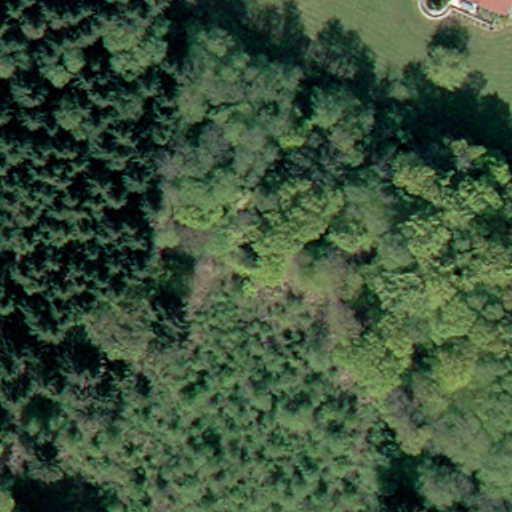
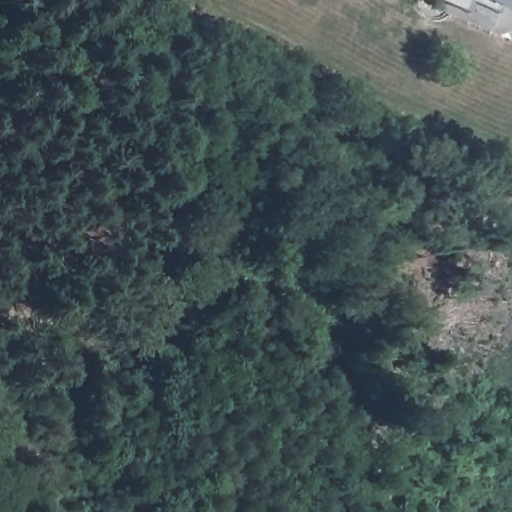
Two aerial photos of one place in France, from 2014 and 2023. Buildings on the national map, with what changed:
unchanged [(496,0),(503,0),(502,2),(496,0)]

